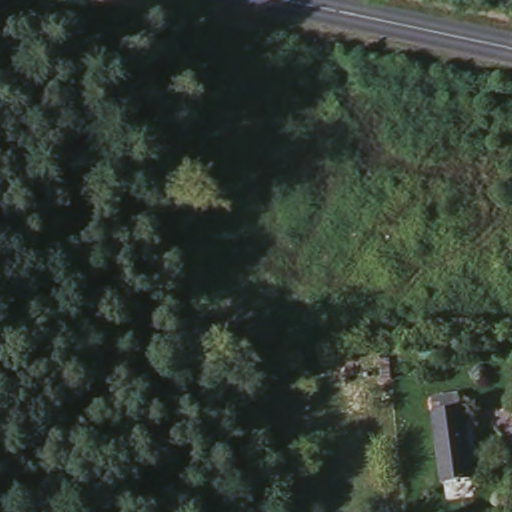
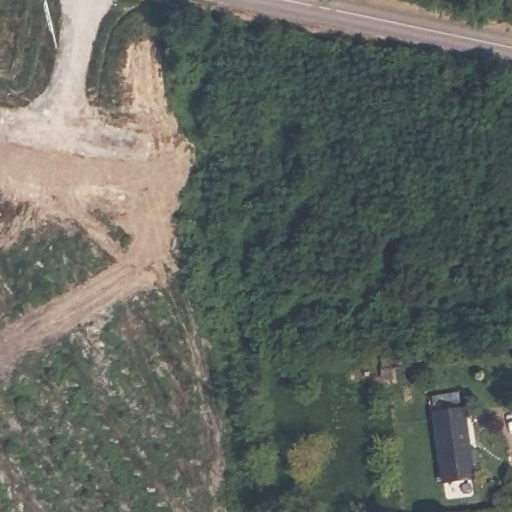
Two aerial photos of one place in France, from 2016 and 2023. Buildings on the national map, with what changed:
unchanged [(477,460),(469,460),(471,476),(443,480),(434,410),(463,406),(468,449),(476,448),(477,460)]

